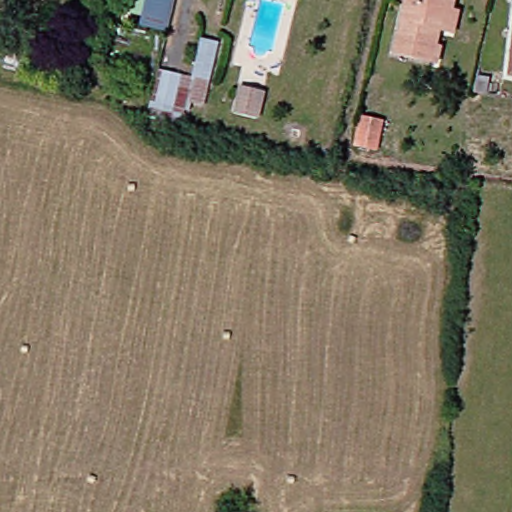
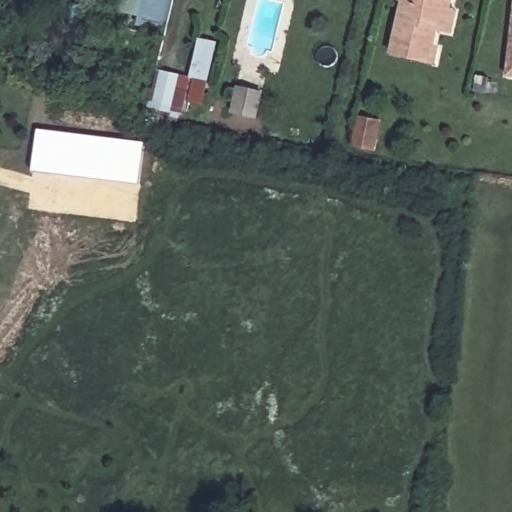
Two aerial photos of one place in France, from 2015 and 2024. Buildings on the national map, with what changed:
unchanged [(144,29),(145,15),(126,11),(128,0),(177,0),(171,33),(144,29)]
unchanged [(392,51),(403,0),(454,0),(452,8),(461,9),(456,33),(447,31),(438,30),(436,44),(442,45),(438,62),(432,60),(392,51)]
unchanged [(224,43),(210,108),(194,106),(190,126),(152,118),(163,72),(196,79),(204,40),(224,43)]
unchanged [(512,60),(512,75),(511,74),(512,60)]
unchanged [(387,129),(382,150),(350,144),(355,121),(387,129)]
new [(142,185),(33,172),(39,128),(147,143),(142,185)]

